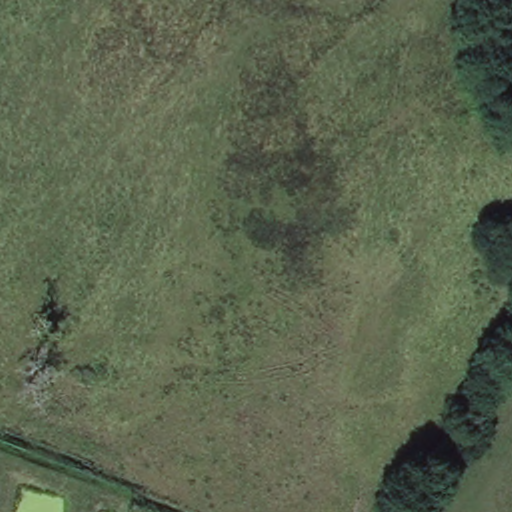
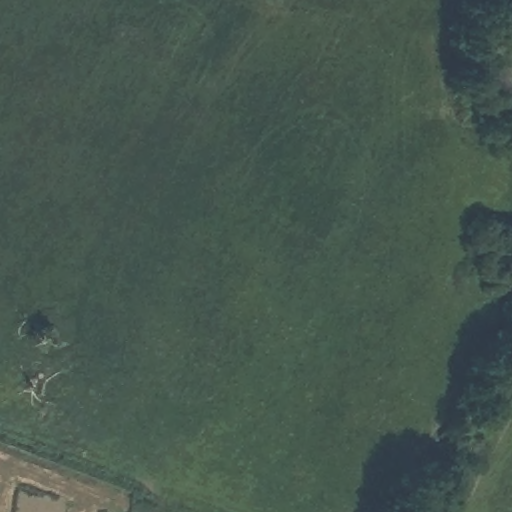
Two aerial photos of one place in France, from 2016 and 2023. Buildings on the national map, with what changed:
[]

